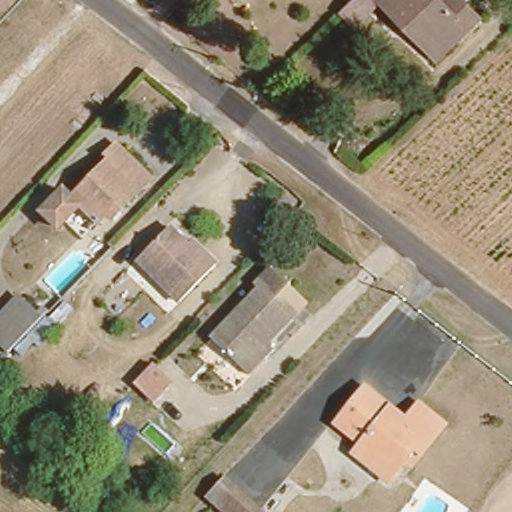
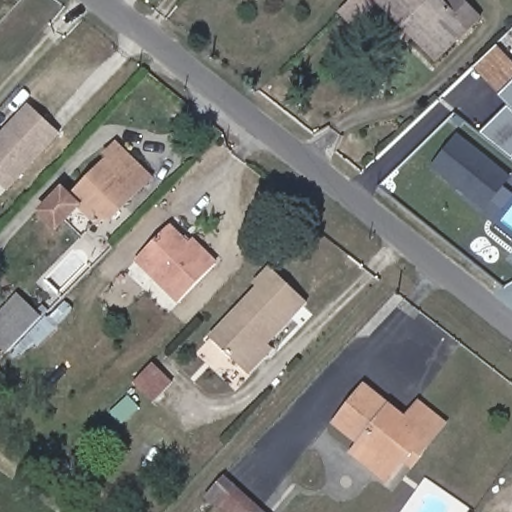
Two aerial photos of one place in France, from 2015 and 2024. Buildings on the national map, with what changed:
unchanged [(354,25),(352,22),(338,7),(346,0),(379,0),(354,25)]
unchanged [(381,0),(441,0),(442,2),(444,0),(463,0),(479,17),(467,28),(435,57),(403,25),(381,0)]
new [(508,106),(472,69),(497,45),(512,60),(512,159),(479,134),(508,106)]
new [(27,104),(61,135),(7,192),(0,185),(0,133),(27,104)]
new [(503,188),(512,195),(512,197),(502,210),(492,202),(485,212),(431,168),(458,135),(511,178),(503,188)]
unchanged [(115,202),(95,224),(74,205),(53,228),(36,212),(57,190),(66,197),(101,160),(95,155),(107,142),(135,168),(147,179),(131,195),(120,207),(115,202)]
unchanged [(166,224),(186,242),(190,237),(215,262),(178,301),(133,260),(166,224)]
unchanged [(250,372),(241,362),(212,333),(260,283),(255,280),(272,263),(308,297),(268,339),(275,345),(250,372)]
unchanged [(15,293),(30,307),(37,299),(44,305),(0,350),(0,309),(15,293)]
unchanged [(410,452),(395,472),(373,455),(357,442),(365,433),(338,412),(367,378),(395,399),(390,403),(406,416),(423,394),(450,416),(426,445),(417,457),(410,452)]
unchanged [(252,512),(228,512),(217,504),(232,485),(258,505),(252,512)]

